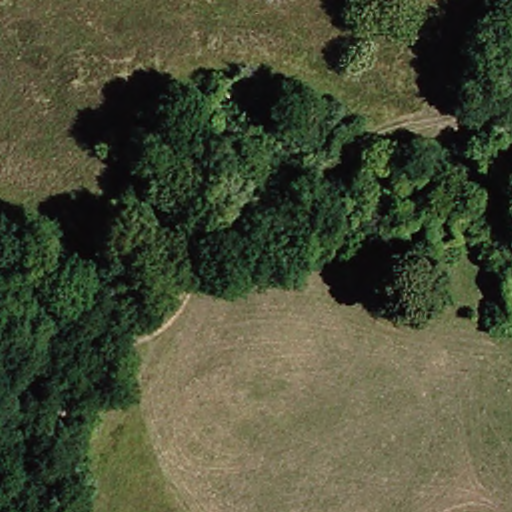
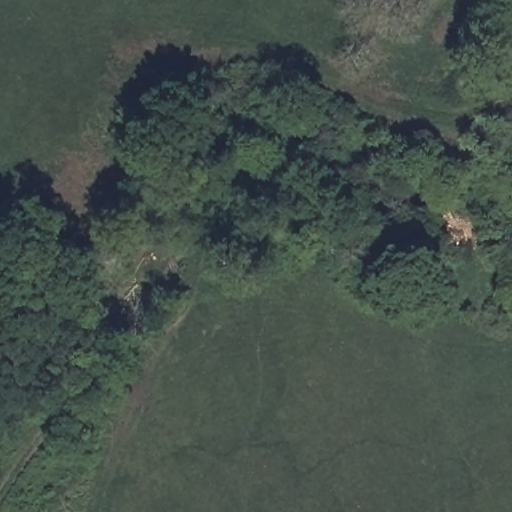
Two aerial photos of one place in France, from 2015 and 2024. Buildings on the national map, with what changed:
[]

